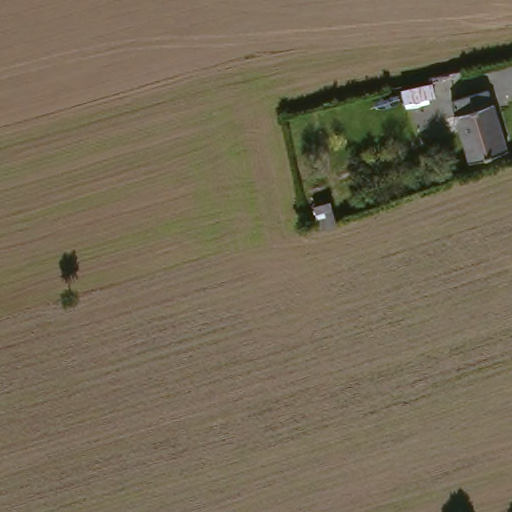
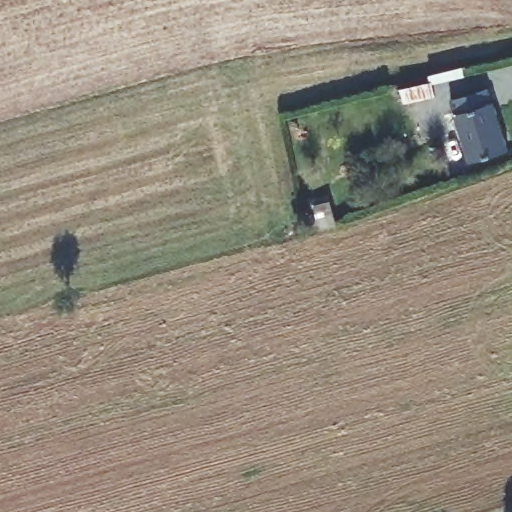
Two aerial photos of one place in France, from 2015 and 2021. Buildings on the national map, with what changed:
unchanged [(489,84),(512,139),(512,143),(477,157),(452,99),(489,84)]
unchanged [(345,228),(330,232),(327,223),(322,209),(338,204),(345,228)]

